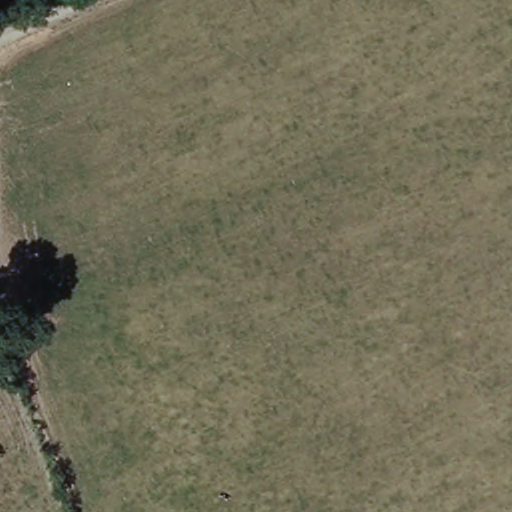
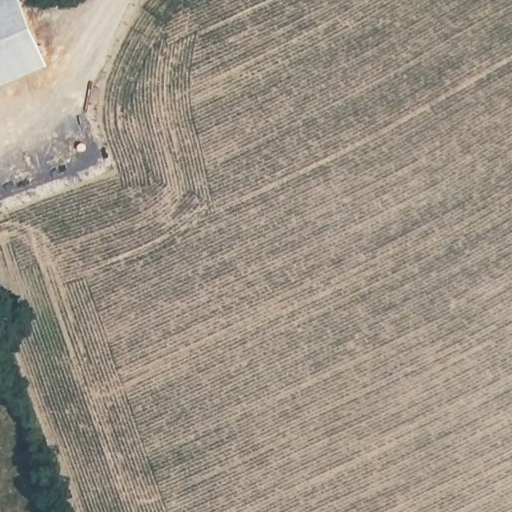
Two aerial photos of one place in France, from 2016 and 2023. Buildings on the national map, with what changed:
new [(0,89),(0,0),(21,0),(53,66),(0,89)]

